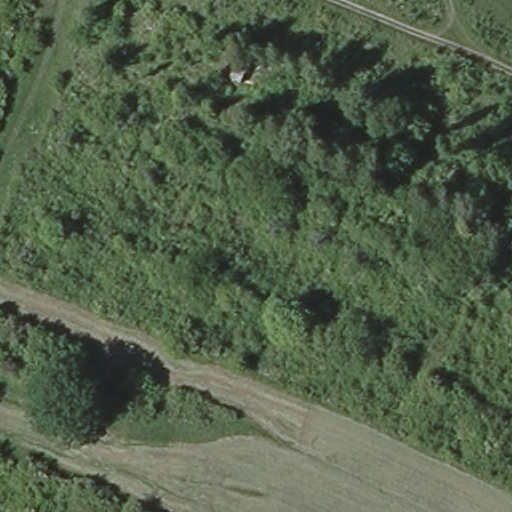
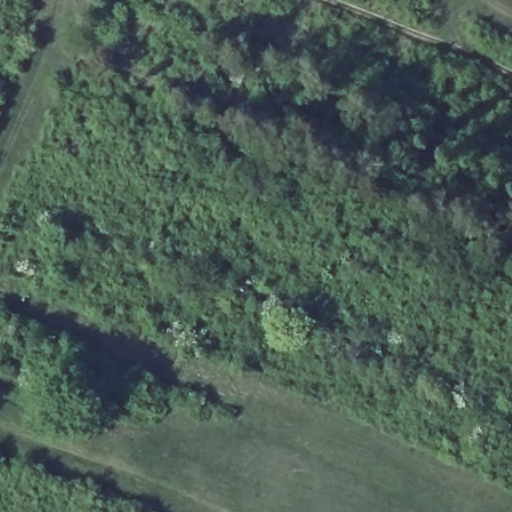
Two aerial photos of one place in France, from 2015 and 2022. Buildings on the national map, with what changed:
unchanged [(235,62),(263,72),(258,91),(231,81),(235,62)]

